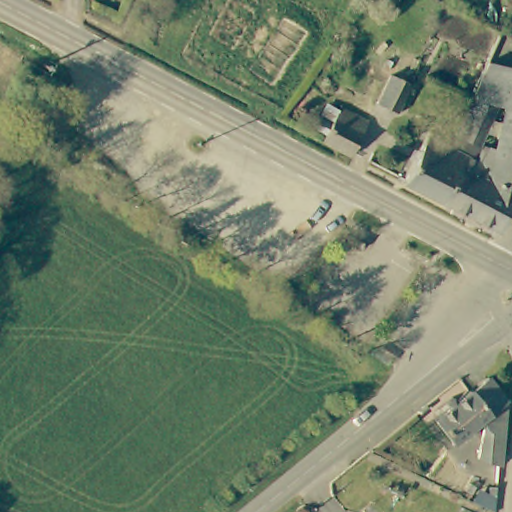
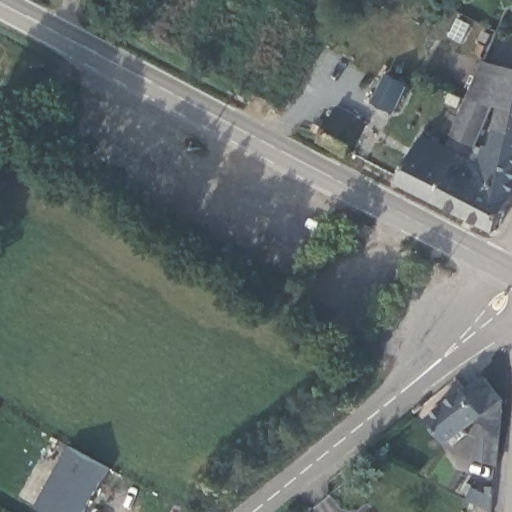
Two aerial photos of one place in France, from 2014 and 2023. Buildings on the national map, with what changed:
unchanged [(466,158),(465,156),(475,143),(482,149),(477,160),(493,168),(510,101),(480,100),(472,134),(453,131),(475,63),(512,68),(512,212),(502,233),(445,202),(466,158)]
unchanged [(371,101),(386,72),(407,83),(391,111),(371,101)]
unchanged [(321,131),(309,123),(317,111),(327,118),(336,106),(360,120),(345,150),(317,136),(321,131)]
unchanged [(466,158),(445,202),(395,179),(416,131),(455,151),(465,156),(466,158)]
unchanged [(480,463),(485,423),(457,443),(440,422),(490,379),(510,398),(504,469),(480,463)]
new [(37,506),(70,446),(111,469),(85,512),(49,512),(37,506)]
unchanged [(475,489),(485,491),(480,506),(471,502),(475,489)]

